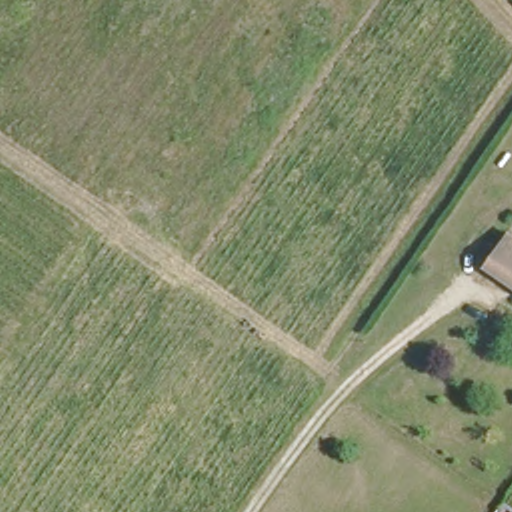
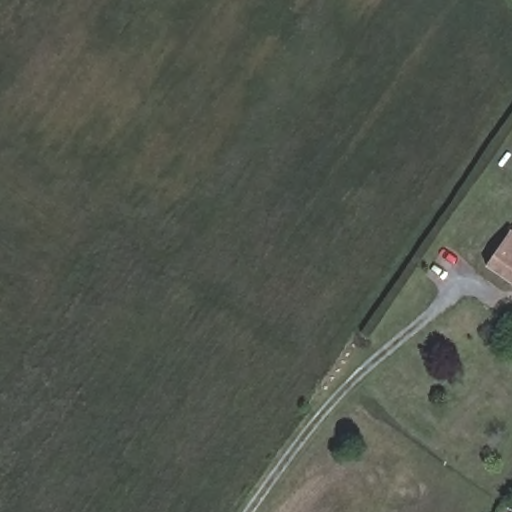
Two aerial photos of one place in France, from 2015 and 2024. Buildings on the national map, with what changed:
unchanged [(510,225),(512,227),(512,277),(487,260),(510,225)]

